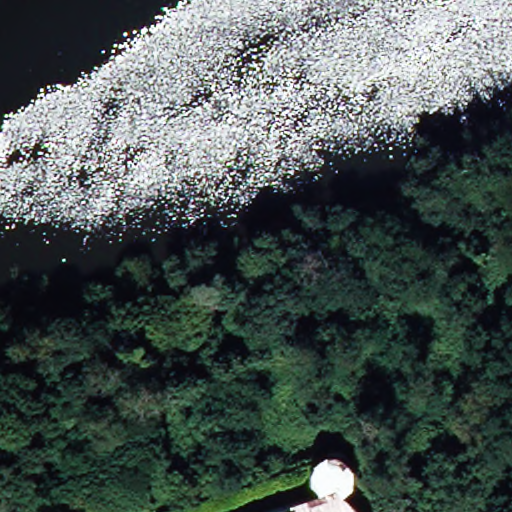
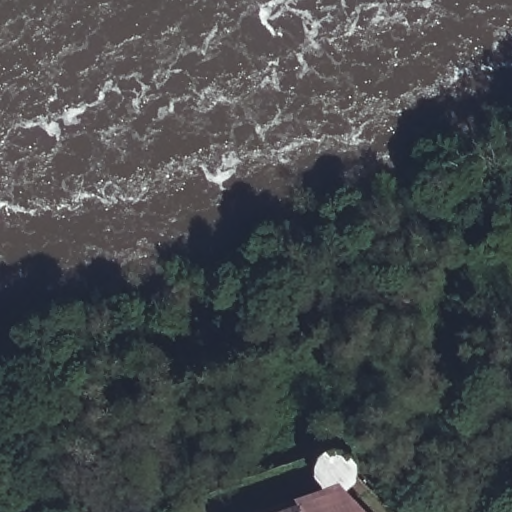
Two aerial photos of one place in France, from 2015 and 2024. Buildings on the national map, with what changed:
unchanged [(310,484),(307,481),(306,479),(304,475),(303,471),(303,467),(304,463),(305,460),(306,458),(308,455),(310,454),(313,452),(317,450),(320,449),(324,449),(328,450),(330,451),(332,452),(334,453),(337,456),(339,459),(340,462),(341,466),(341,469),(341,473),(340,476),(339,478),(337,481),(335,483),(332,485),(330,487),(354,512),(244,512),(314,488),(310,484)]

